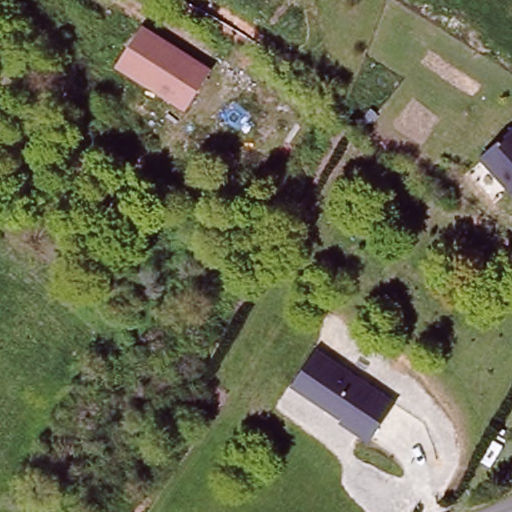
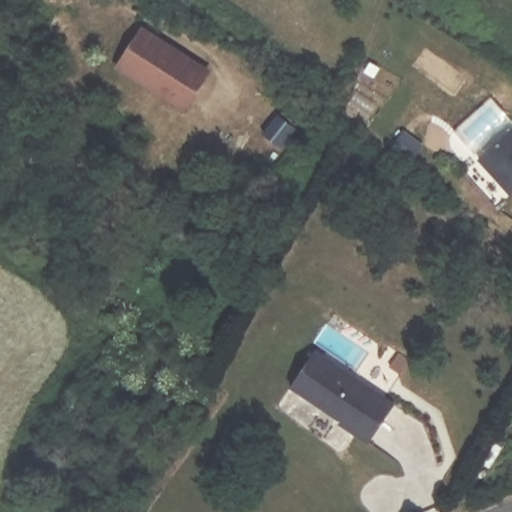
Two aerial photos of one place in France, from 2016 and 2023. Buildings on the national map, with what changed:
unchanged [(115,66),(144,25),(211,70),(186,111),(115,66)]
unchanged [(477,157),(509,126),(512,130),(512,193),(510,192),(477,157)]
unchanged [(369,446),(334,424),(336,421),(279,383),(309,342),(404,402),(369,446)]

